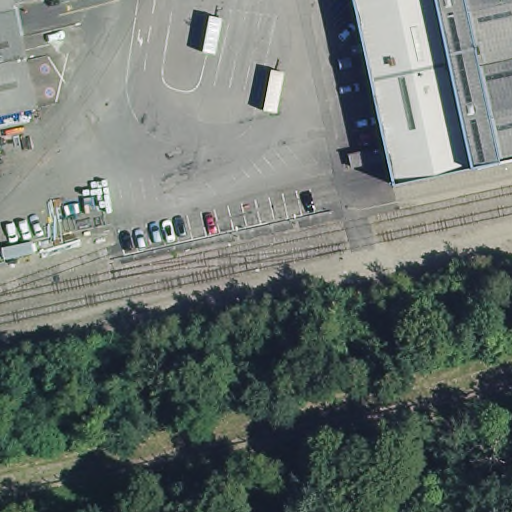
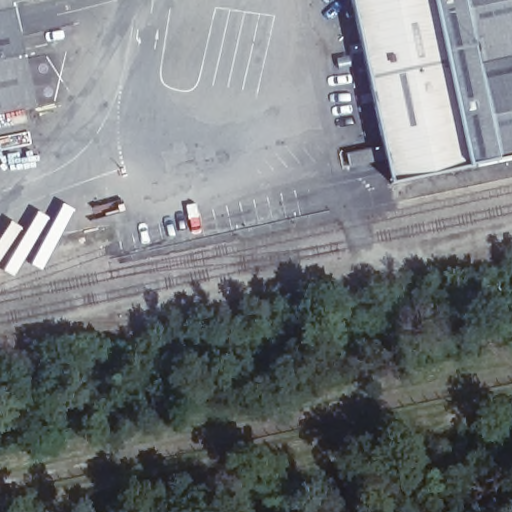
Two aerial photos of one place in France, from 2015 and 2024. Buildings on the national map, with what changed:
unchanged [(0,114),(0,0),(26,0),(49,104),(0,114)]
unchanged [(390,146),(360,0),(512,0),(512,160),(399,185),(393,160),(355,169),(352,155),(390,146)]

